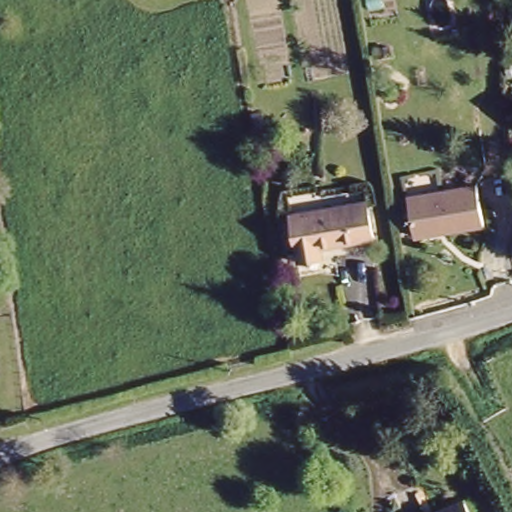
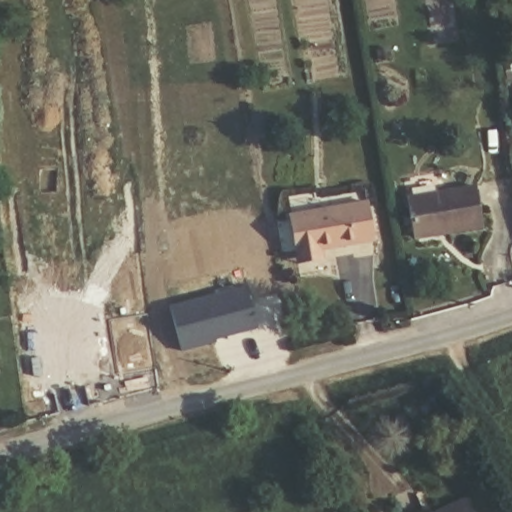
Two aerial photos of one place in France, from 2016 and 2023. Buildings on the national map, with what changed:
unchanged [(470,187),(477,228),(414,239),(407,198),(470,187)]
unchanged [(294,261),(291,247),(284,211),(358,200),(364,236),(317,243),(319,258),(294,261)]
new [(177,301),(252,280),(263,321),(222,332),(223,335),(188,344),(177,301)]
unchanged [(467,512),(429,512),(461,498),(467,512)]

